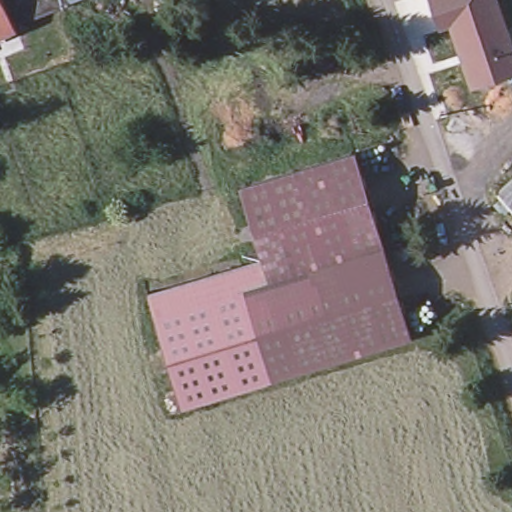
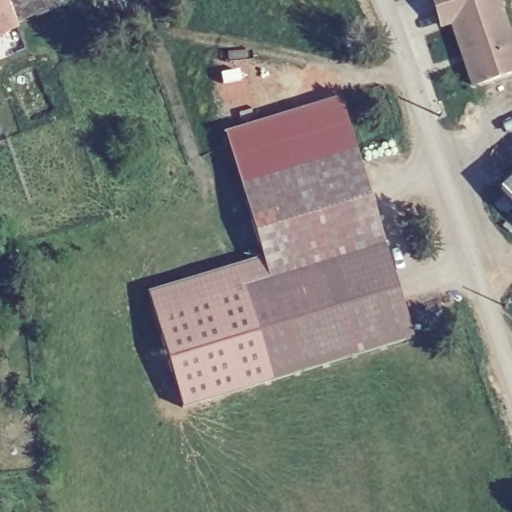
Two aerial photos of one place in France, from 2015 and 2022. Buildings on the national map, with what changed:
unchanged [(0,2),(0,0),(9,0),(1,3),(0,2)]
unchanged [(11,0),(63,0),(65,3),(21,22),(11,0)]
unchanged [(470,89),(450,27),(437,32),(426,0),(499,0),(512,39),(512,75),(470,89)]
unchanged [(0,31),(0,2),(1,3),(10,26),(0,31)]
new [(230,132),(345,97),(361,150),(245,183),(230,132)]
unchanged [(272,276),(267,258),(245,183),(361,150),(388,242),(272,276)]
unchanged [(512,173),(512,195),(501,183),(512,173)]
unchanged [(415,334),(273,375),(246,283),(272,276),(388,242),(415,334)]
unchanged [(272,276),(246,283),(273,375),(182,400),(152,292),(267,258),(272,276)]

